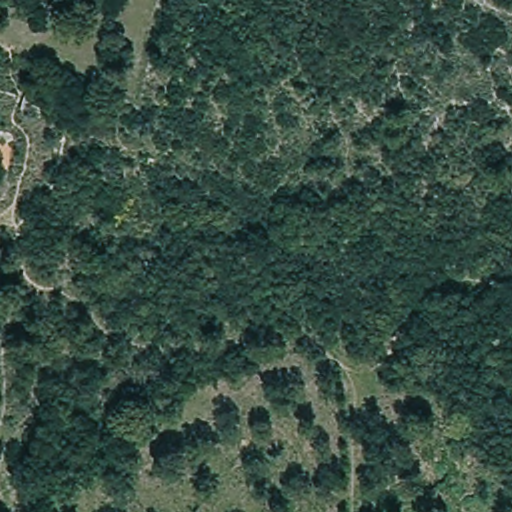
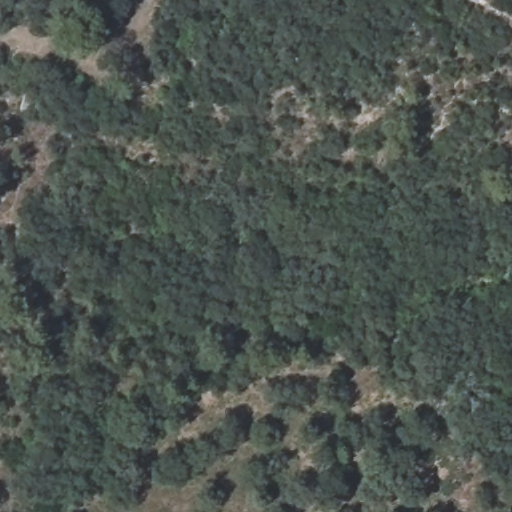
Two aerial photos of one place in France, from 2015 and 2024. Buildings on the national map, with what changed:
[]

